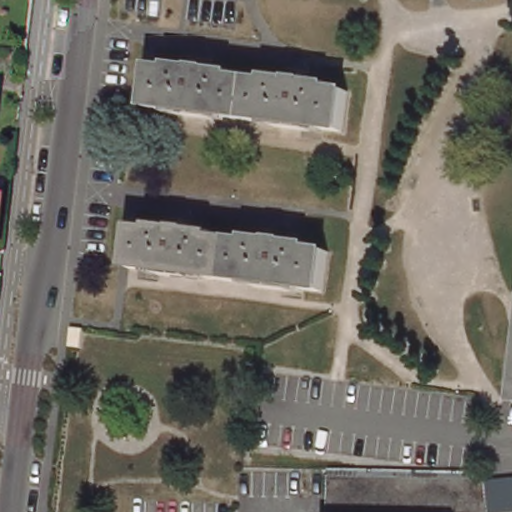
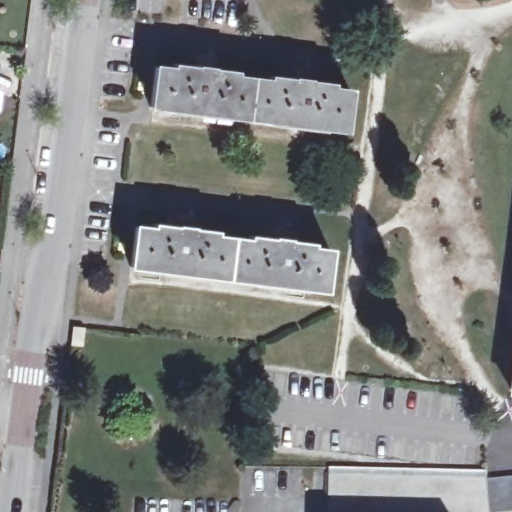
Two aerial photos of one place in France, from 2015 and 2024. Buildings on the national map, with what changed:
unchanged [(152,105),(157,64),(351,89),(345,130),(152,105)]
unchanged [(132,265),(137,225),(332,250),(327,290),(132,265)]
unchanged [(493,512),(329,512),(330,469),(485,471),(490,483),(493,512)]
unchanged [(490,483),(512,482),(512,512),(493,512),(490,483)]

